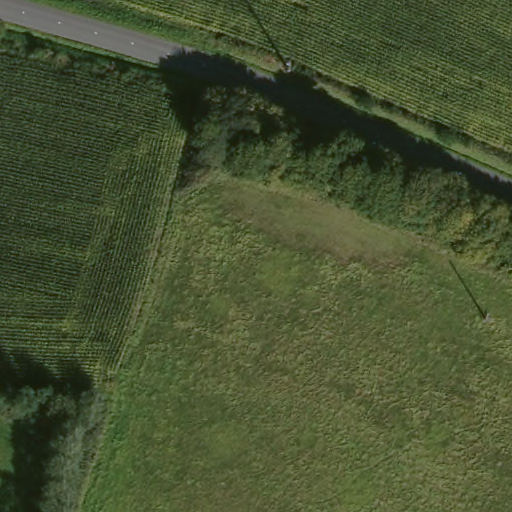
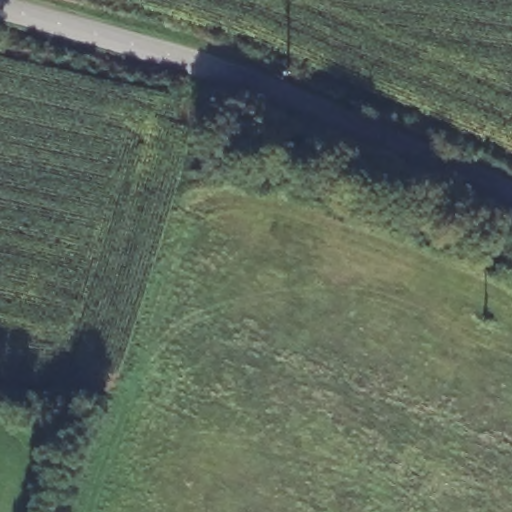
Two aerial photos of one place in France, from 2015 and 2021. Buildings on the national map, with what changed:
[]

